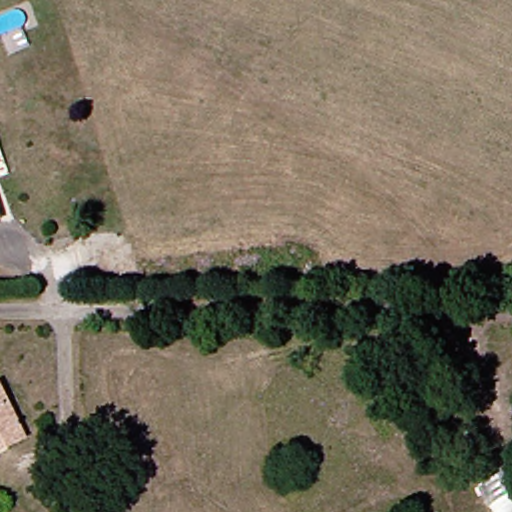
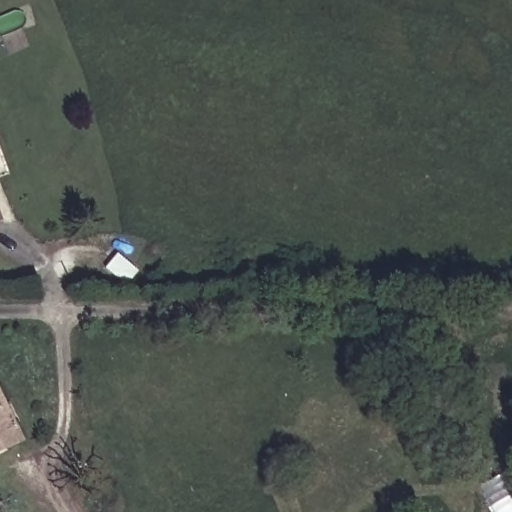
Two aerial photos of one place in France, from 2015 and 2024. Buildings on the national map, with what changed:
unchanged [(2,225),(0,225),(0,216),(2,225)]
unchanged [(8,389),(30,446),(7,455),(0,457),(0,392),(8,389)]
unchanged [(512,512),(497,512),(482,487),(512,474),(512,512)]

